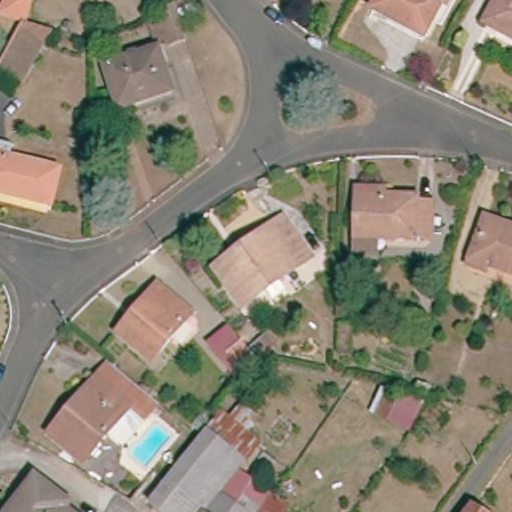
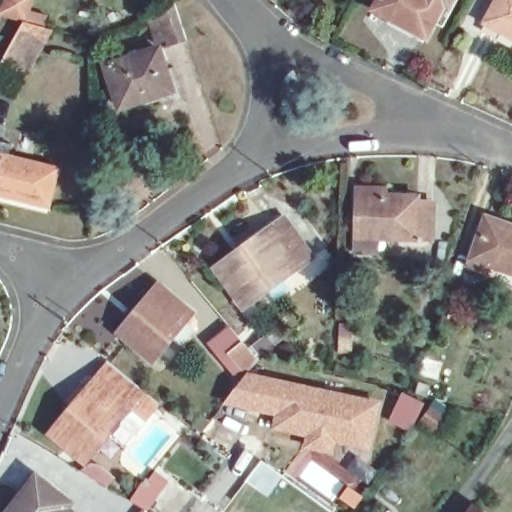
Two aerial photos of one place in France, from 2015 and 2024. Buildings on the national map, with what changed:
unchanged [(453,0),(445,16),(441,14),(423,48),(369,20),(379,0),(453,0)]
unchanged [(500,0),(512,0),(512,42),(485,27),(487,25),(500,0)]
unchanged [(172,13),(183,49),(167,54),(157,24),(172,13)]
unchanged [(0,67),(24,23),(53,30),(24,81),(0,68),(0,67)]
unchanged [(102,76),(155,60),(169,101),(115,119),(102,76)]
unchanged [(10,163),(59,175),(50,210),(0,198),(0,147),(13,150),(10,163)]
unchanged [(353,256),(354,242),(354,201),(354,195),(381,195),(381,202),(413,203),(413,209),(429,209),(428,244),(373,243),(372,256),(353,256)]
unchanged [(488,271),(471,265),(488,219),(512,227),(512,273),(490,265),(488,271)]
unchanged [(244,256),(285,225),(312,261),(245,310),(224,280),(219,274),(244,256)]
unchanged [(194,315),(154,362),(120,333),(133,320),(151,297),(161,286),(194,315)]
unchanged [(268,335),(274,342),(262,352),(255,344),(268,335)]
demolished [(235,376),(223,361),(244,343),(258,360),(248,374),(244,370),(235,376)]
new [(223,361),(244,343),(258,360),(248,374),(244,370),(235,376),(223,361)]
unchanged [(109,458),(94,445),(71,470),(38,443),(85,387),(97,373),(119,391),(128,398),(141,409),(146,414),(109,458)]
new [(372,451),(337,445),(334,455),(303,450),(305,437),(270,430),(274,415),(225,404),(248,374),(383,401),(372,451)]
unchanged [(432,390),(429,401),(417,397),(420,387),(432,390)]
unchanged [(404,398),(424,408),(417,424),(397,414),(403,402),(404,398)]
demolished [(283,512),(165,512),(153,502),(224,411),(233,401),(257,419),(249,430),(233,450),(248,462),(242,470),(277,495),(289,503),(283,512)]
new [(144,510),(131,500),(154,470),(170,481),(147,512),(142,512),(144,510)]
unchanged [(24,497),(38,480),(60,497),(70,505),(65,510),(67,512),(13,512),(24,497)]
unchanged [(469,510),(471,512),(467,512),(469,510)]

